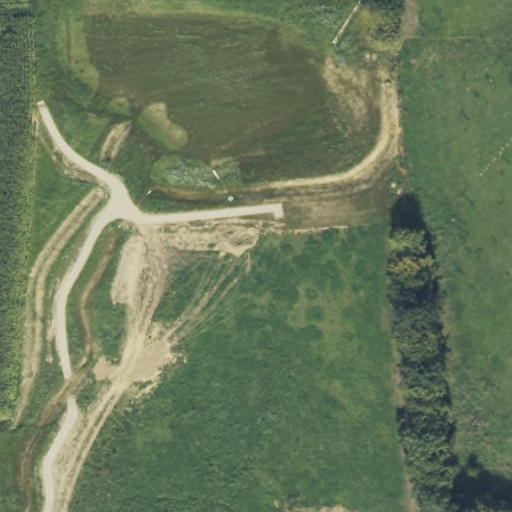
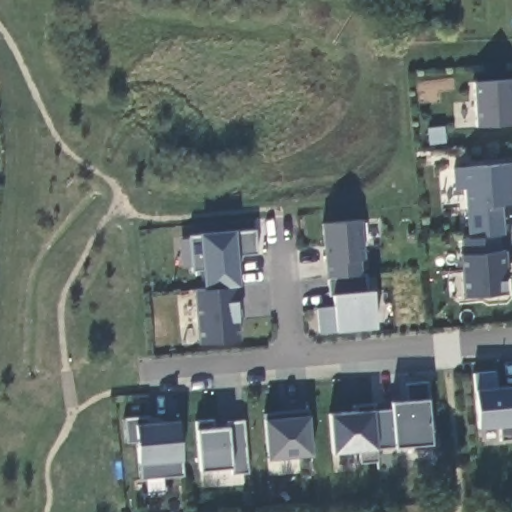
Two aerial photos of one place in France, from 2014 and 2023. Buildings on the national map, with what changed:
new [(512,86),(512,124),(478,127),(474,83),(512,80),(512,86)]
new [(463,298),(460,254),(463,254),(462,238),(468,237),(464,189),(455,189),(454,169),(512,162),(512,204),(502,205),(504,234),(501,234),(502,250),(506,249),(508,276),(505,277),(507,294),(463,298)]
new [(365,259),(361,259),(362,274),(367,274),(374,290),(378,328),(336,331),(320,333),(317,308),(333,305),(332,294),(327,278),(321,224),(362,220),(365,259)]
new [(259,253),(236,254),(243,317),(239,317),(241,340),(199,345),(194,290),(204,289),(202,270),(192,271),(190,236),(199,234),(199,233),(234,229),(235,232),(255,229),(259,253)]
new [(501,441),(503,426),(478,429),(475,389),(473,374),(495,372),(499,387),(512,386),(512,440),(501,441)]
new [(394,447),(377,449),(333,454),(329,414),(373,411),(391,409),(390,403),(410,401),(406,384),(426,382),(427,399),(430,444),(394,447)]
new [(308,415),(313,456),(268,460),(265,419),(264,414),(308,410),(308,415)]
new [(140,479),(140,464),(138,464),(135,439),(126,442),(124,419),(148,417),(151,423),(179,421),(183,460),(183,476),(140,479)]
new [(248,473),(232,474),(232,468),(231,468),(199,471),(196,429),(196,422),(215,421),(218,428),(230,427),(227,422),(243,421),(248,473)]

